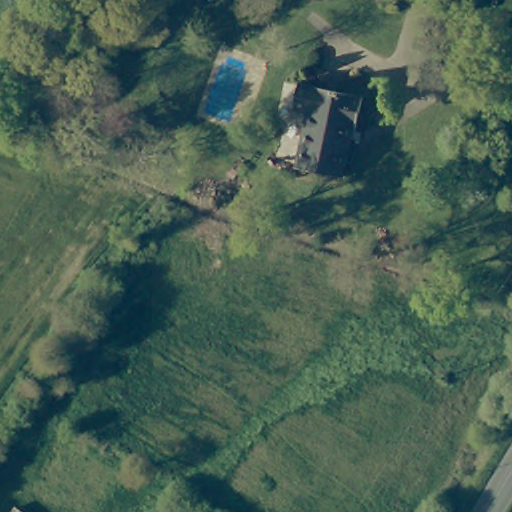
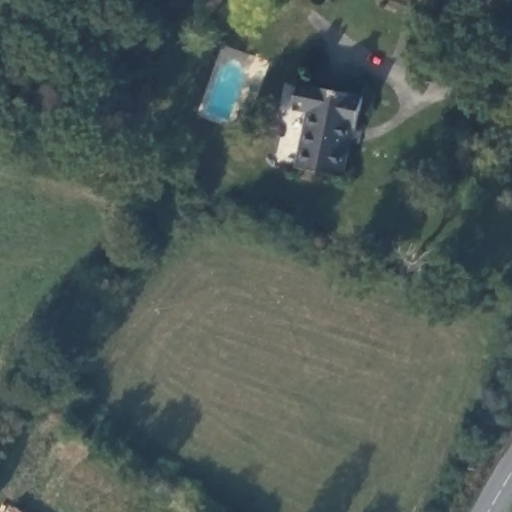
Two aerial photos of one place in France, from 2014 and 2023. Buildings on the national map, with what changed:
unchanged [(314,115),(297,112),(303,88),(368,104),(362,132),(357,131),(346,182),(301,172),(314,115)]
unchanged [(17,511),(18,512),(15,512),(17,511)]

